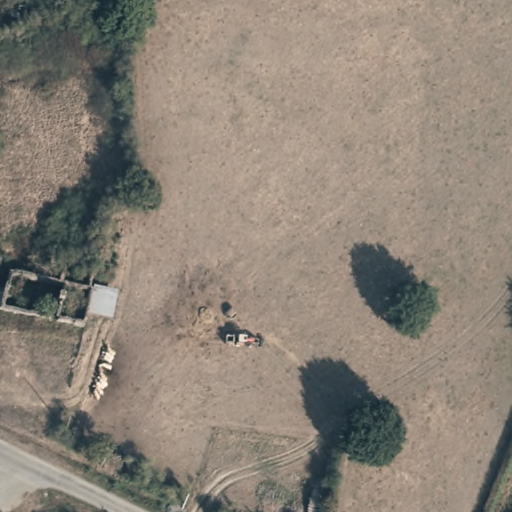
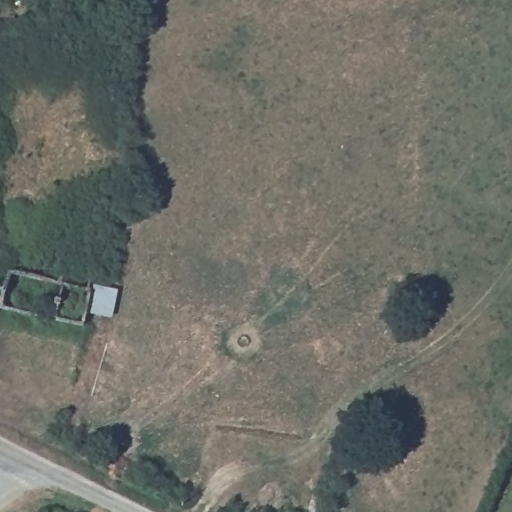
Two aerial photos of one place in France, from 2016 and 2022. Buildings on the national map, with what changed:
unchanged [(60,300),(83,304),(87,285),(117,289),(112,317),(88,312),(85,329),(69,327),(56,324),(60,300)]

